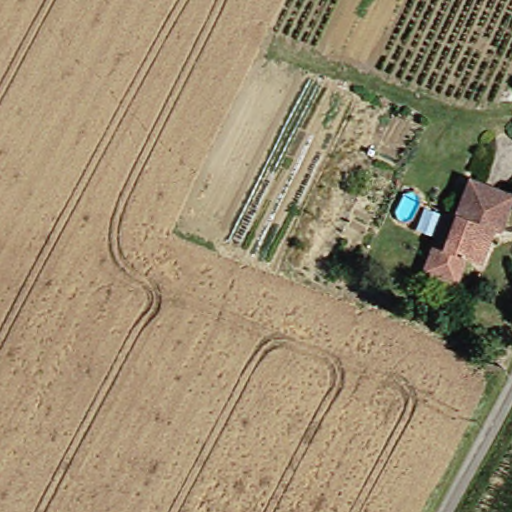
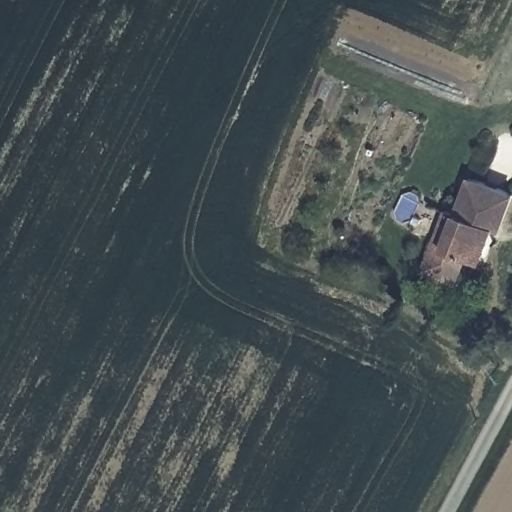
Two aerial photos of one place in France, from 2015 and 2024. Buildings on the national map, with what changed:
unchanged [(446,260),(451,244),(454,234),(445,231),(452,207),(462,210),(476,173),(512,186),(512,216),(508,227),(502,225),(490,259),(473,253),(468,267),(446,260)]

